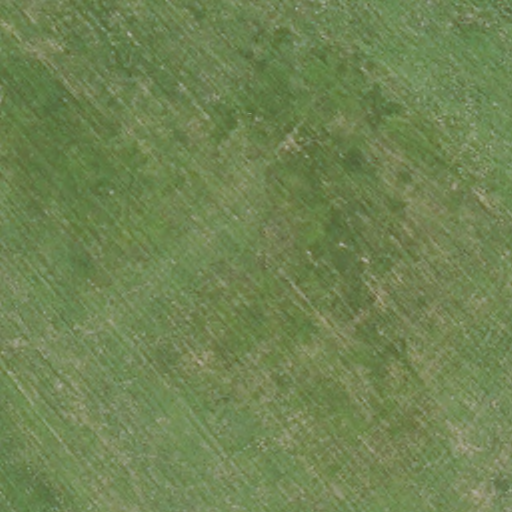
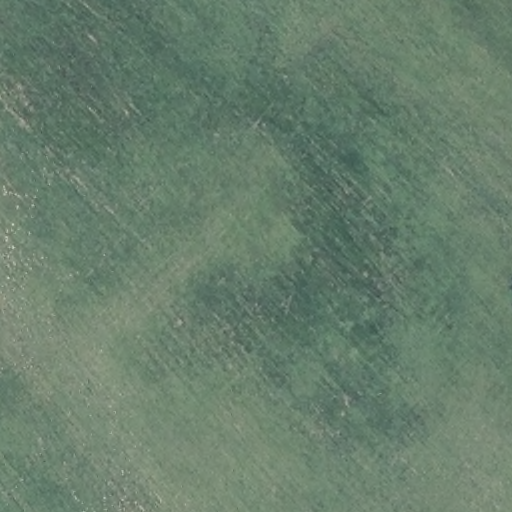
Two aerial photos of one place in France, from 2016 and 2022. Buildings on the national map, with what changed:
[]

